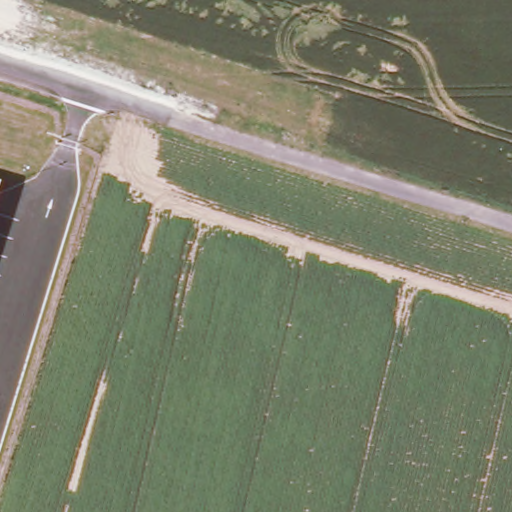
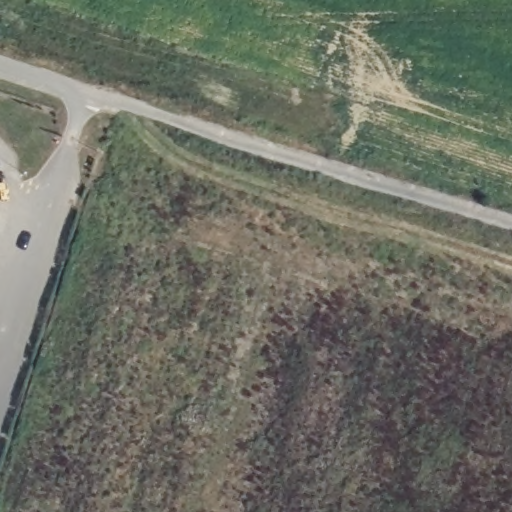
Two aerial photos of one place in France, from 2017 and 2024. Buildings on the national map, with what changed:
unchanged [(0,190),(0,185),(2,185),(0,190)]

